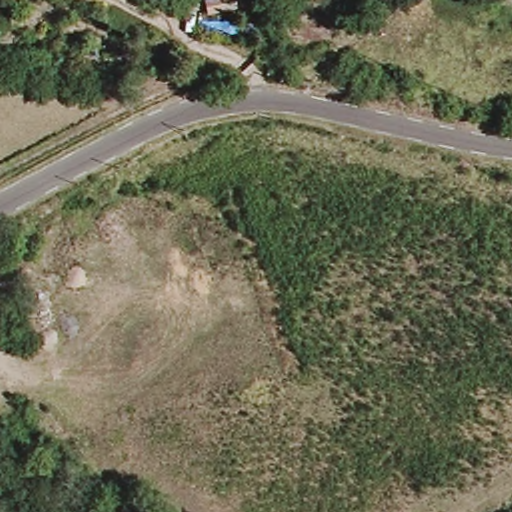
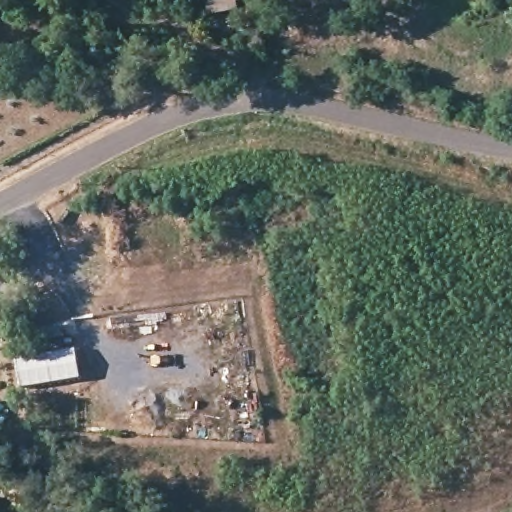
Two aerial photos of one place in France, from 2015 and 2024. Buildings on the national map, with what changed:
demolished [(42,234),(36,254),(23,250),(28,231),(42,234)]
new [(22,388),(17,360),(76,350),(81,379),(22,388)]

